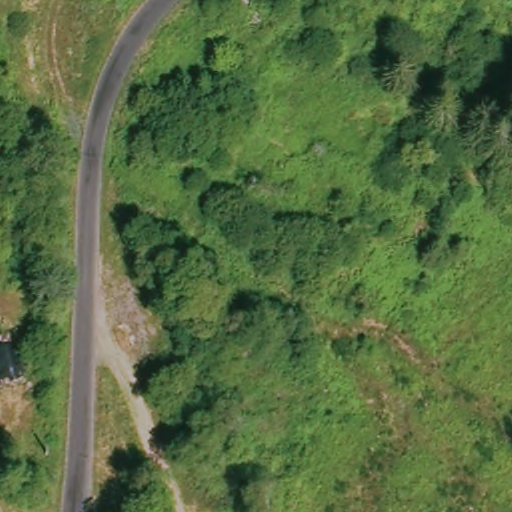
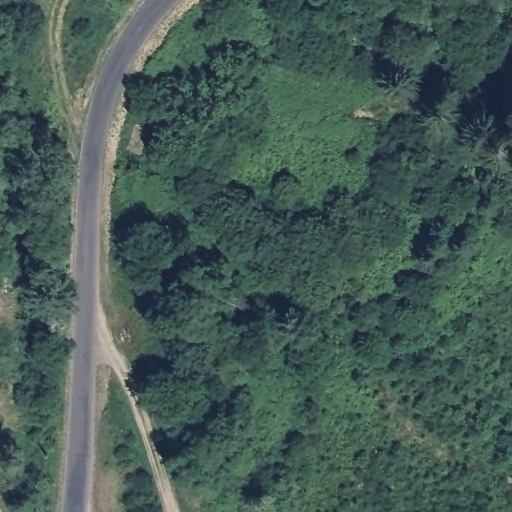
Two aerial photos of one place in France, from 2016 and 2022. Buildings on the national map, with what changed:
unchanged [(58,56),(48,37),(86,12),(98,31),(58,56)]
unchanged [(139,157),(124,153),(134,124),(148,129),(139,157)]

